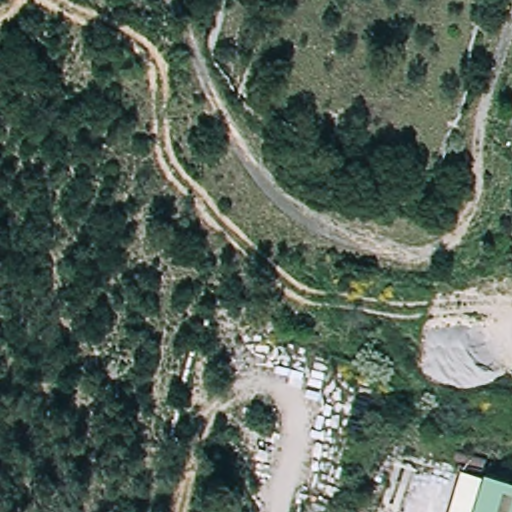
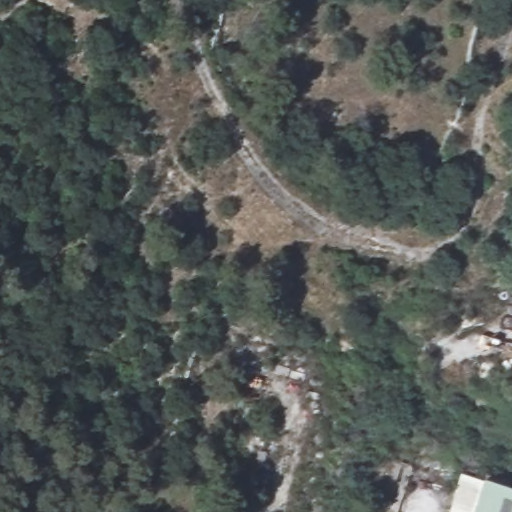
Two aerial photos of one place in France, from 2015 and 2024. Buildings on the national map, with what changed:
unchanged [(461,472),(512,487),(512,512),(449,512),(461,472)]

